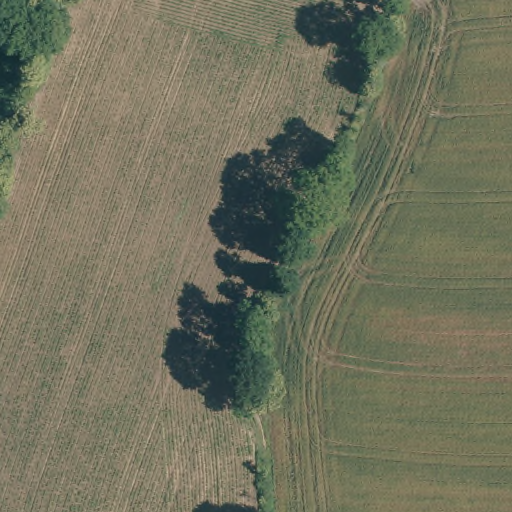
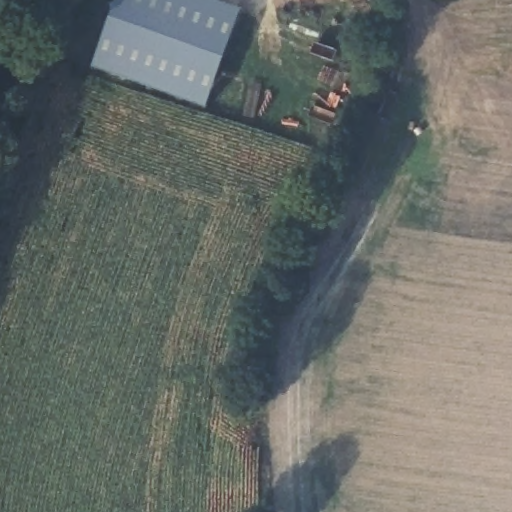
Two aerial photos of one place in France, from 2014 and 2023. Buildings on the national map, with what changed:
new [(207,109),(92,68),(116,0),(212,0),(243,11),(207,109)]

